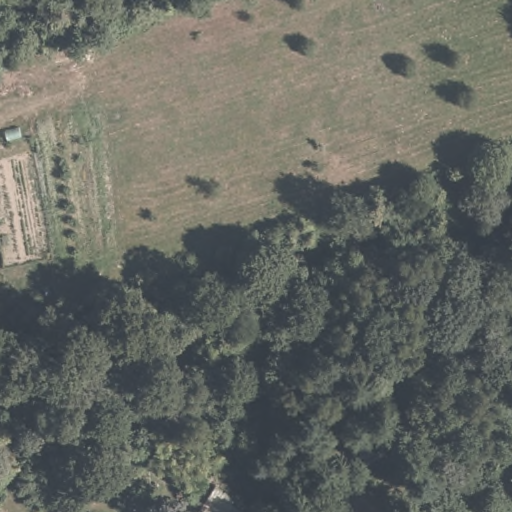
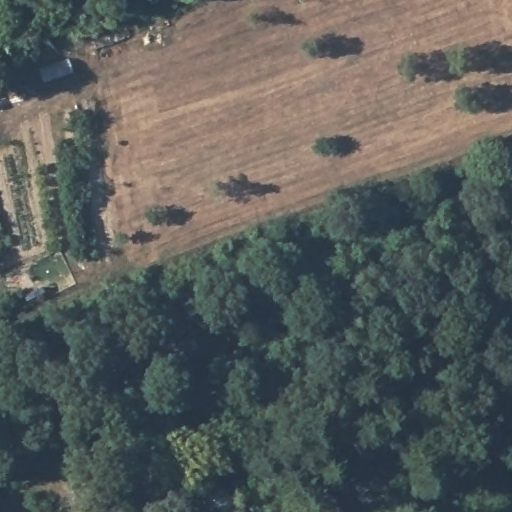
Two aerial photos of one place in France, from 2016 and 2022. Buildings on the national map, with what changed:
unchanged [(343,512),(296,512),(327,492),(343,512)]
unchanged [(234,496),(257,510),(256,512),(225,512),(234,496)]
unchanged [(95,512),(93,512),(93,511),(95,512)]
unchanged [(221,512),(218,512),(218,511),(221,512)]

